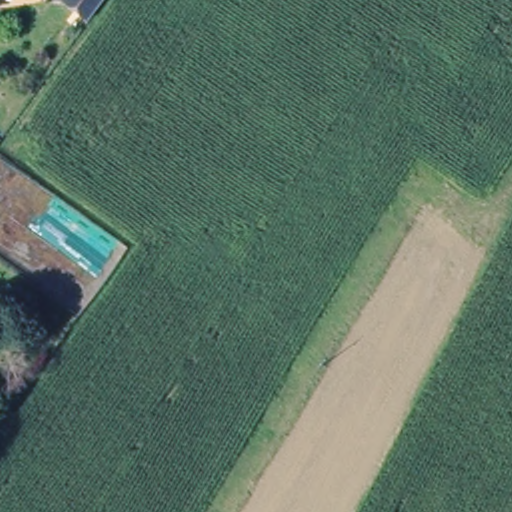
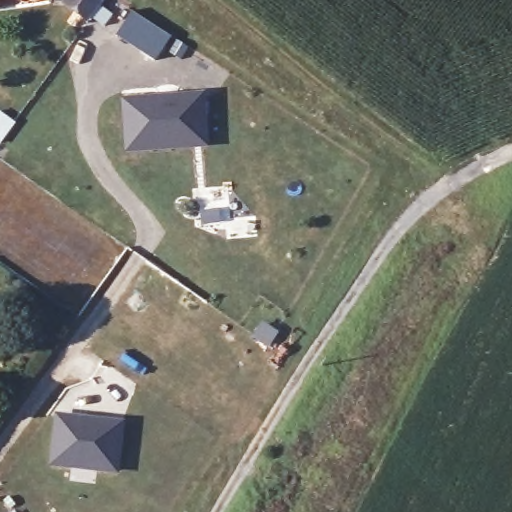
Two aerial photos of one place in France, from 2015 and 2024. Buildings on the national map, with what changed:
unchanged [(65,4),(68,0),(106,0),(89,21),(65,4)]
new [(203,94),(205,144),(128,149),(125,100),(203,94)]
new [(14,126),(0,145),(0,117),(14,126)]
new [(264,326),(277,334),(268,346),(256,339),(264,326)]
new [(61,420),(124,427),(120,475),(56,468),(61,420)]

